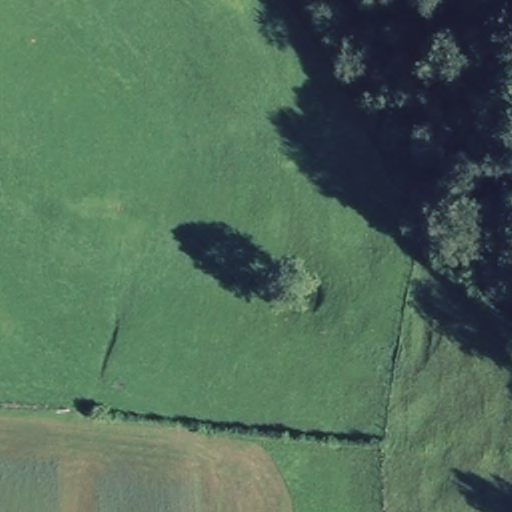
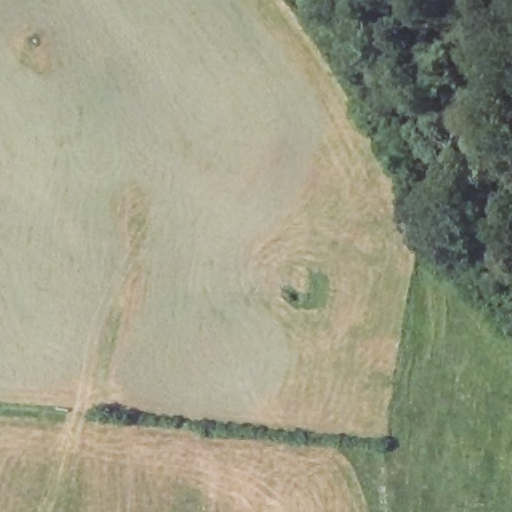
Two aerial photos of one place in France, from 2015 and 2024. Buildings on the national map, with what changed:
[]

